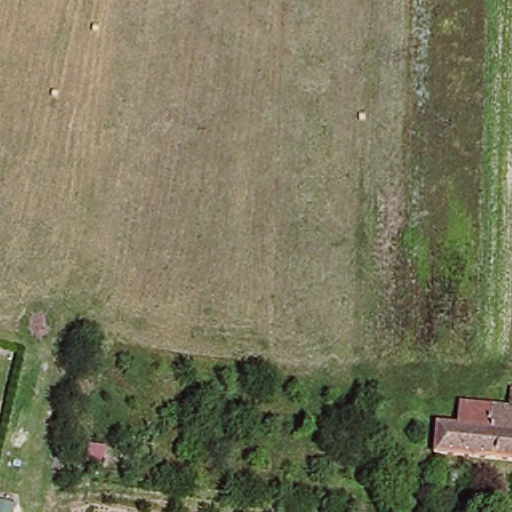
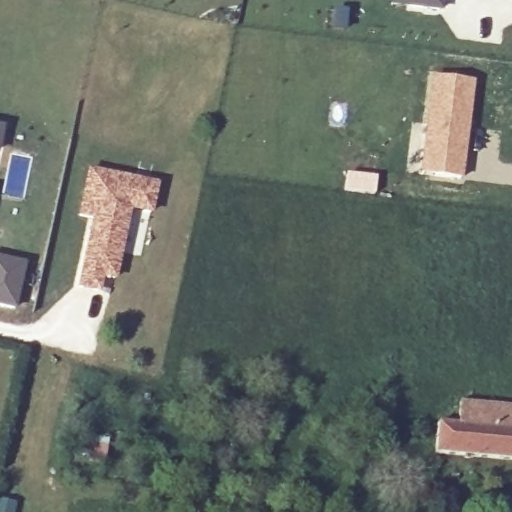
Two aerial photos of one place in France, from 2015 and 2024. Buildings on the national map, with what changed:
new [(442,0),(440,10),(386,6),(387,0),(442,0)]
new [(428,75),(472,80),(460,179),(418,173),(428,75)]
new [(0,141),(0,126),(3,126),(0,141)]
new [(89,220),(75,217),(85,168),(159,182),(150,216),(131,212),(113,285),(104,283),(101,292),(74,287),(89,220)]
new [(343,172),(376,176),(372,197),(340,193),(343,172)]
new [(12,314),(0,311),(0,258),(25,263),(12,314)]
unchanged [(433,452),(436,420),(457,422),(460,400),(512,404),(512,459),(433,452)]

